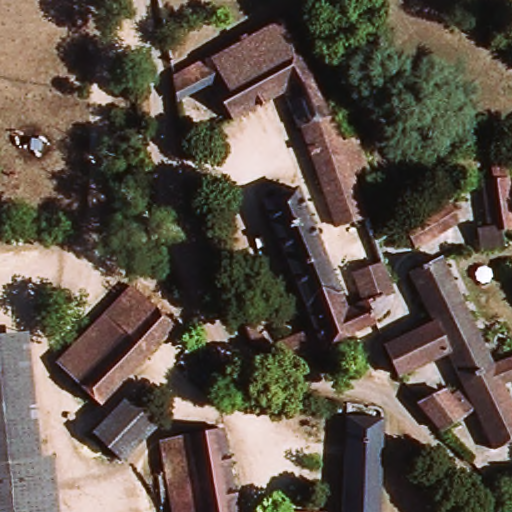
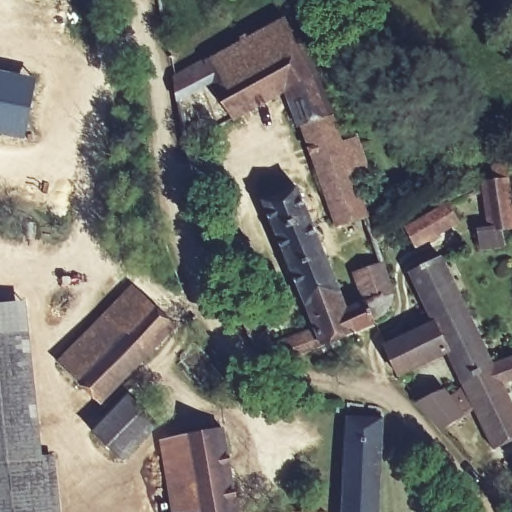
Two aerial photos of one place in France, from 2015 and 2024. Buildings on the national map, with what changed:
unchanged [(344,160),(360,209),(334,217),(283,90),(229,112),(211,75),(174,92),(169,65),(284,16),(310,63),(334,127),(345,123),(356,155),(344,160)]
new [(26,139),(0,134),(0,73),(37,80),(26,139)]
unchanged [(484,224),(479,197),(476,177),(491,174),(486,160),(501,157),(504,172),(512,202),(512,221),(496,226),(499,245),(475,245),(475,226),(484,224)]
unchanged [(257,302),(276,340),(314,324),(260,196),(296,181),(350,300),(364,294),(352,261),(379,250),(397,295),(385,323),(363,333),(299,363),(283,360),(262,345),(247,306),(257,302)]
unchanged [(400,220),(448,203),(456,221),(407,240),(400,220)]
unchanged [(381,345),(426,325),(399,265),(436,249),(484,344),(492,360),(455,378),(440,351),(395,375),(381,345)]
unchanged [(132,291),(169,330),(128,372),(95,402),(74,381),(118,340),(101,320),(132,291)]
unchanged [(30,309),(32,333),(53,512),(0,512),(0,312),(30,309)]
unchanged [(118,340),(74,381),(56,362),(101,320),(118,340)]
unchanged [(493,448),(469,405),(458,386),(455,378),(492,360),(512,350),(512,374),(501,380),(512,401),(512,439),(493,448)]
unchanged [(443,428),(419,402),(458,386),(469,405),(443,428)]
unchanged [(122,457),(93,432),(125,395),(155,420),(122,457)]
unchanged [(382,415),(379,512),(342,512),(341,415),(382,415)]
unchanged [(234,501),(235,508),(214,512),(172,512),(164,473),(158,435),(179,430),(219,424),(234,501)]
unchanged [(325,505),(324,512),(289,512),(288,505),(325,505)]
unchanged [(236,512),(214,512),(235,508),(236,512)]

